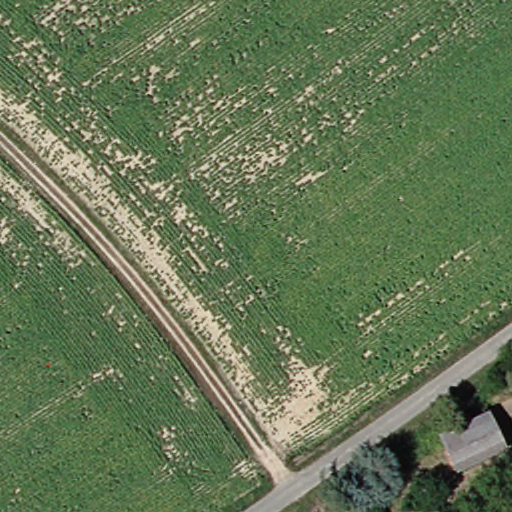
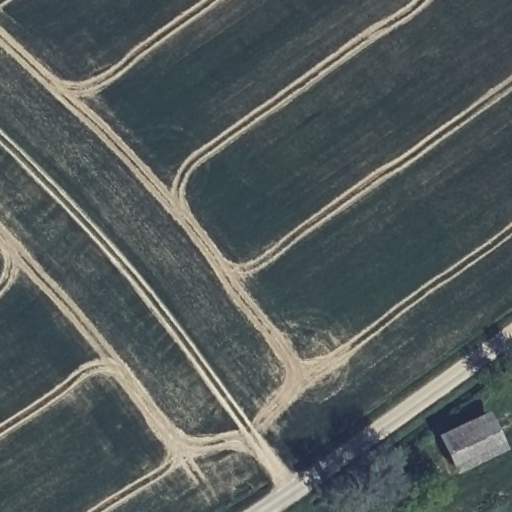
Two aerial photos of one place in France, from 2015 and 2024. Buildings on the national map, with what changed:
unchanged [(443,472),(428,440),(479,411),(496,442),(443,472)]

